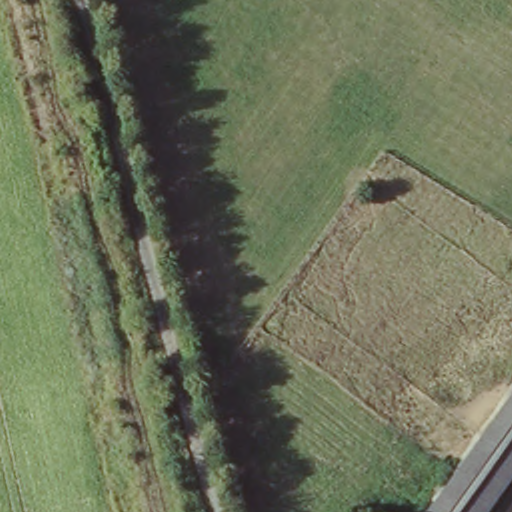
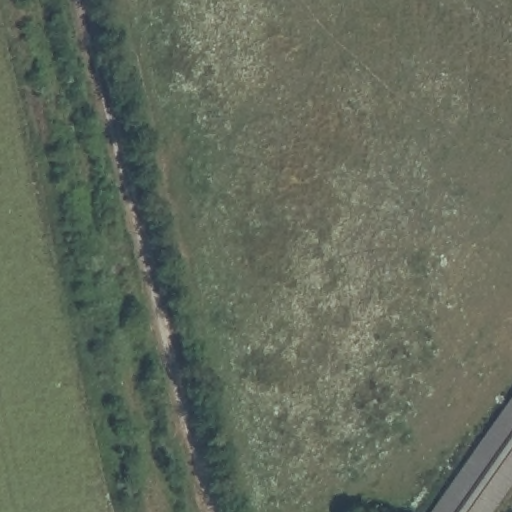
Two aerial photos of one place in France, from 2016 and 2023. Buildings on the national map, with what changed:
unchanged [(512,483),(492,512),(429,512),(512,395),(512,483)]

